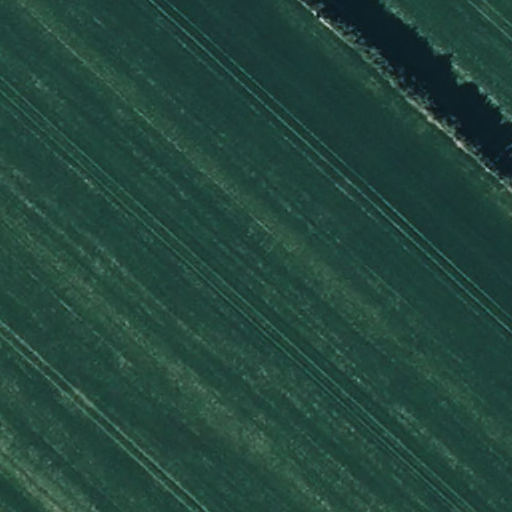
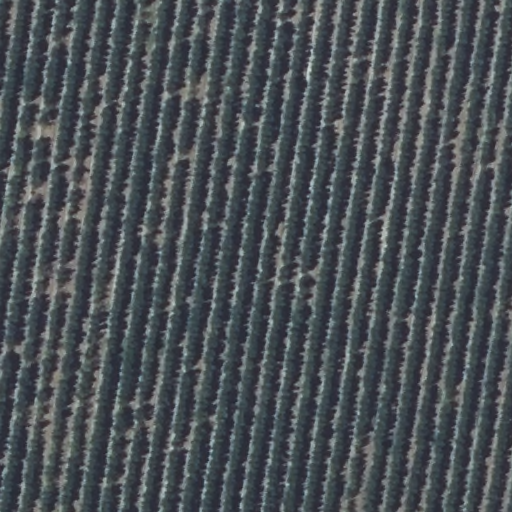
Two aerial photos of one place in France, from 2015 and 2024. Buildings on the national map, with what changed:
[]

